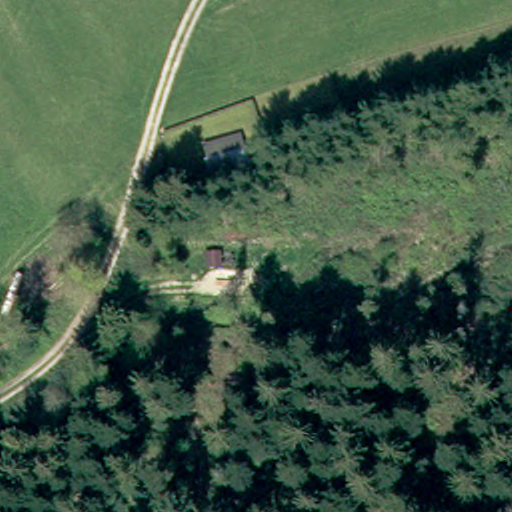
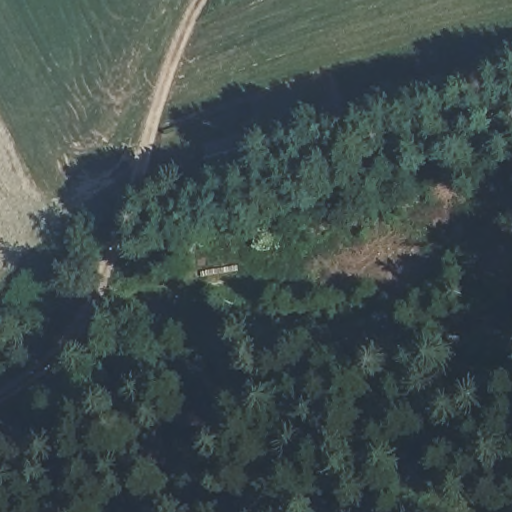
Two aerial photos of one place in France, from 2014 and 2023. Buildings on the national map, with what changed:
unchanged [(259,166),(210,179),(202,152),(245,131),(259,166)]

